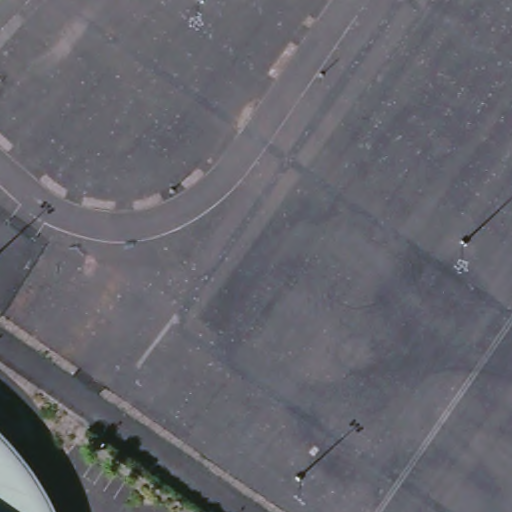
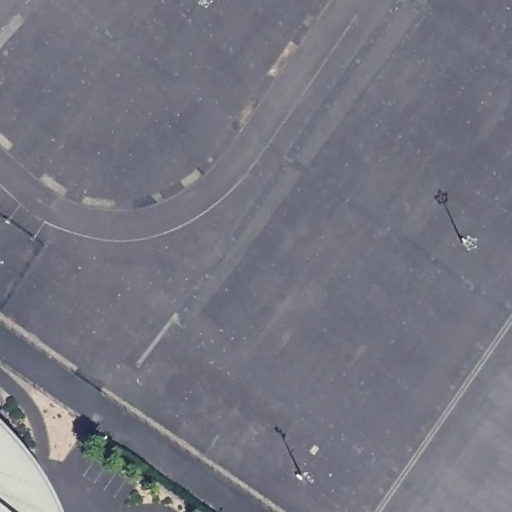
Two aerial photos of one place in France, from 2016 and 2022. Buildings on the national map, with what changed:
unchanged [(7,433),(15,441),(20,448),(27,456),(32,465),(38,473),(43,481),(49,490),(54,498),(58,507),(60,512),(0,512),(0,425),(1,426),(7,433)]

